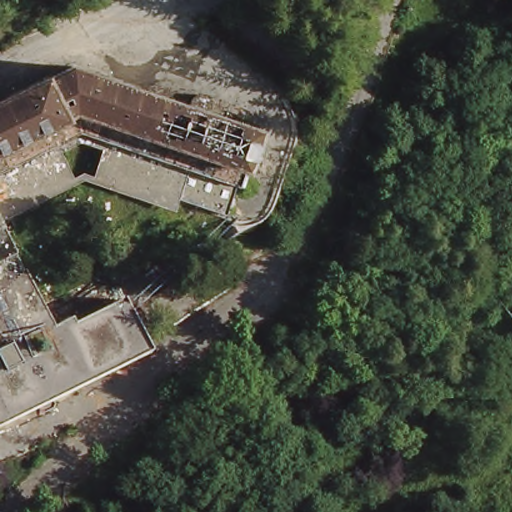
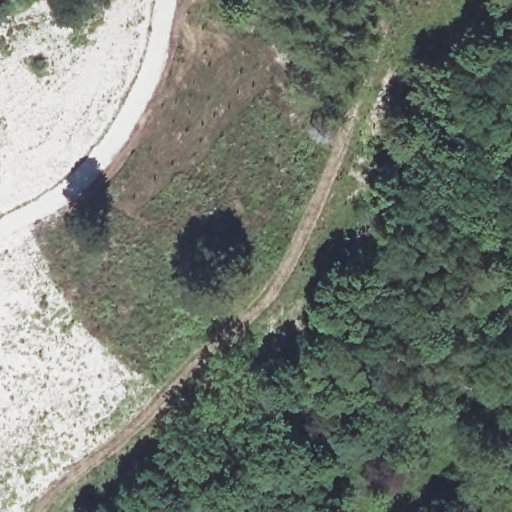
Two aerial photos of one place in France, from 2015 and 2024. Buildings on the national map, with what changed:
demolished [(205,106),(255,122),(237,179),(232,177),(227,191),(230,192),(227,202),(223,201),(221,207),(173,192),(170,199),(94,172),(106,138),(84,131),(60,142),(73,172),(1,207),(3,214),(0,215),(0,90),(45,67),(47,71),(70,60),(187,100),(205,106)]
demolished [(53,399),(51,403),(45,405),(40,405),(37,401),(0,420),(0,415),(0,223),(45,314),(35,319),(40,328),(50,324),(52,327),(70,318),(73,323),(123,298),(135,321),(145,342),(147,347),(52,393),(53,395),(53,399)]

